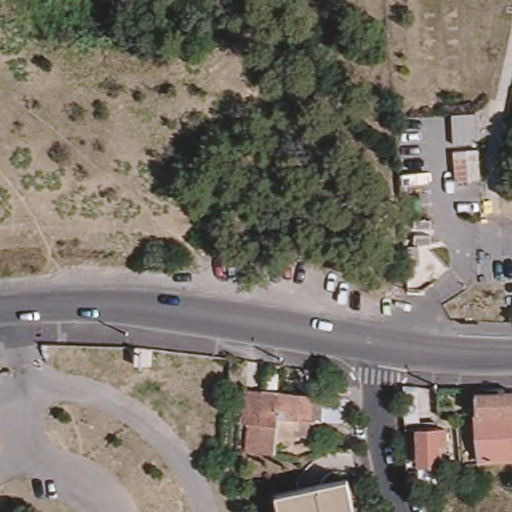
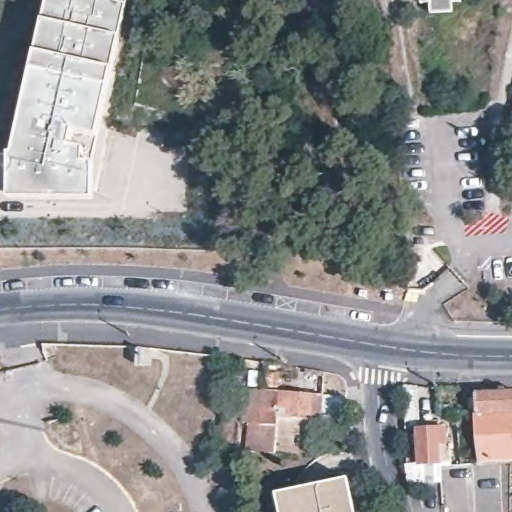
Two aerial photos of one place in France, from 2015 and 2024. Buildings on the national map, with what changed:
new [(13,152),(35,52),(42,20),(46,0),(128,0),(127,7),(118,38),(112,69),(97,137),(73,132),(69,146),(82,148),(83,164),(92,164),(92,197),(8,199),(8,188),(0,188),(0,153),(13,152)]
unchanged [(512,119),(512,124),(511,124),(512,119)]
unchanged [(273,459),(245,457),(245,442),(227,443),(226,419),(240,414),(243,390),(261,389),(264,373),(276,373),(276,390),(308,396),(344,400),(344,426),(316,421),(314,436),(293,438),(290,448),(273,448),(273,459)]
unchanged [(505,383),(505,389),(512,388),(512,456),(483,459),(479,409),(477,390),(477,385),(505,383)]
unchanged [(442,456),(442,461),(421,461),(419,425),(446,424),(447,439),(448,455),(442,456)]
unchanged [(281,512),(276,495),(347,479),(354,512),(281,512)]

